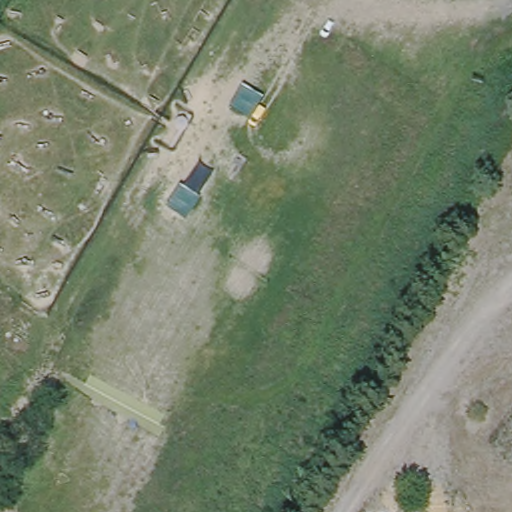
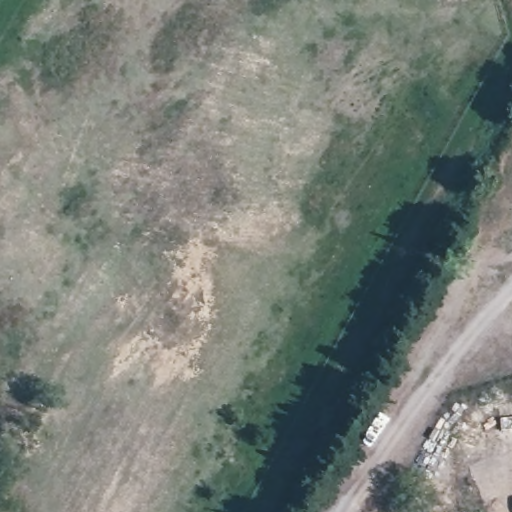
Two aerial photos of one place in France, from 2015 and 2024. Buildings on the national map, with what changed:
[]

